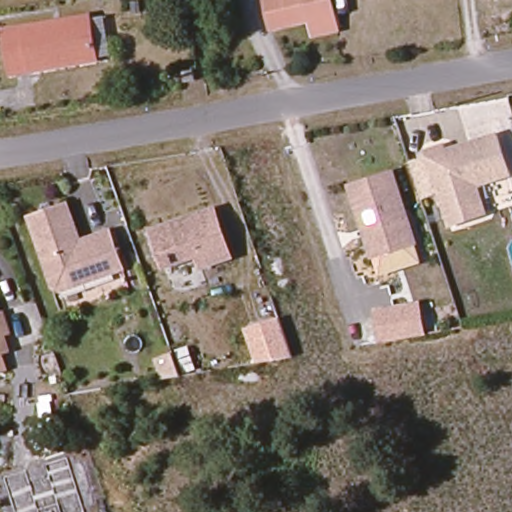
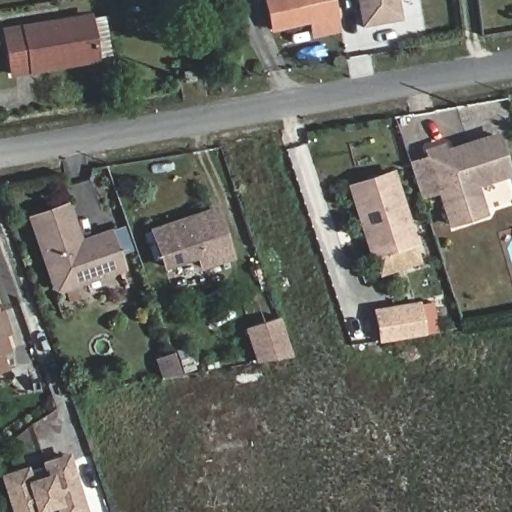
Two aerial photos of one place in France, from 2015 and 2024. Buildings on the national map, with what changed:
unchanged [(311,36),(308,21),(275,28),(269,0),(330,0),(336,30),(311,36)]
new [(400,20),(360,27),(355,0),(396,0),(400,20)]
unchanged [(89,19),(98,61),(13,78),(5,36),(89,19)]
unchanged [(219,85),(216,70),(227,67),(233,81),(233,82),(219,85)]
unchanged [(439,150),(442,160),(450,157),(453,152),(492,139),(504,177),(471,189),(480,217),(446,228),(423,155),(439,150)]
unchanged [(409,241),(368,256),(344,187),(385,173),(409,241)]
unchanged [(72,234),(68,235),(70,241),(79,245),(80,241),(108,231),(120,267),(95,276),(90,274),(76,279),(73,284),(59,289),(53,286),(29,218),(62,205),(72,234)]
unchanged [(206,206),(223,253),(193,263),(189,251),(156,263),(144,227),(206,206)]
unchanged [(380,343),(376,308),(421,304),(426,335),(380,343)]
unchanged [(257,365),(247,330),(280,320),(293,357),(257,365)]
unchanged [(1,340),(6,353),(0,356),(0,321),(6,338),(1,340)]
unchanged [(61,512),(59,505),(40,510),(41,512),(16,512),(6,479),(27,472),(35,496),(55,489),(48,465),(68,458),(85,512),(61,512)]

